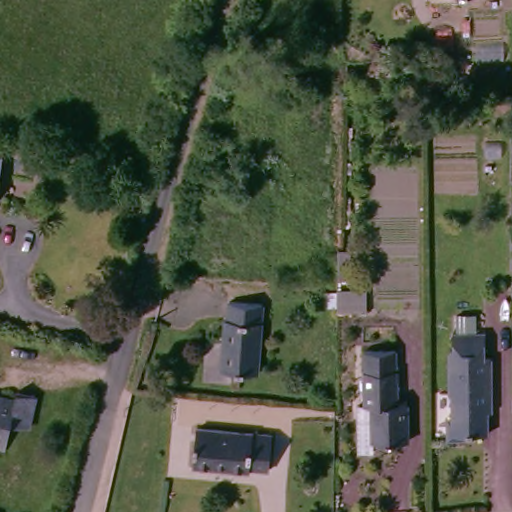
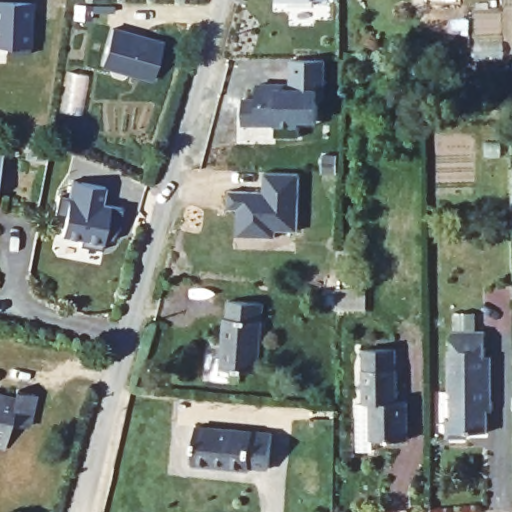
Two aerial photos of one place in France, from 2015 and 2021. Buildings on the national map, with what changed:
new [(4,53),(5,45),(0,45),(0,0),(31,0),(29,54),(4,53)]
new [(290,5),(291,0),(313,0),(313,5),(290,5)]
new [(112,30),(162,44),(152,81),(101,66),(112,30)]
unchanged [(451,85),(439,86),(436,55),(449,54),(451,85)]
new [(298,125),(298,137),(274,137),(274,124),(241,123),(242,99),(256,100),(257,84),(277,85),(291,86),(292,60),(324,61),(322,102),(317,102),(316,120),(316,125),(298,125)]
unchanged [(0,174),(0,161),(1,161),(0,174)]
new [(229,191),(264,192),(265,172),(300,174),(298,231),(276,230),(276,237),(238,236),(239,209),(229,209),(229,191)]
new [(104,238),(103,249),(81,246),(82,238),(63,235),(66,216),(55,214),(59,196),(69,198),(72,180),(105,186),(102,203),(124,207),(121,224),(113,240),(104,238)]
unchanged [(349,250),(349,279),(337,279),(338,250),(349,250)]
unchanged [(366,312),(336,312),(336,307),(324,307),(324,292),(337,292),(366,292),(366,312)]
unchanged [(273,305),(267,374),(231,371),(235,319),(238,319),(239,302),(273,305)]
unchanged [(460,419),(460,394),(458,394),(458,352),(461,352),(461,333),(493,333),(493,358),(499,358),(499,412),(495,412),(495,434),(475,434),(470,439),(460,439),(454,434),(455,424),(460,419)]
unchanged [(413,442),(378,442),(378,452),(363,452),(363,405),(369,405),(368,350),(401,349),(402,403),(411,404),(413,442)]
unchanged [(23,437),(6,433),(1,460),(0,460),(0,409),(9,411),(12,400),(30,405),(23,437)]
unchanged [(277,434),(274,469),(256,468),(255,471),(197,466),(200,428),(277,434)]

